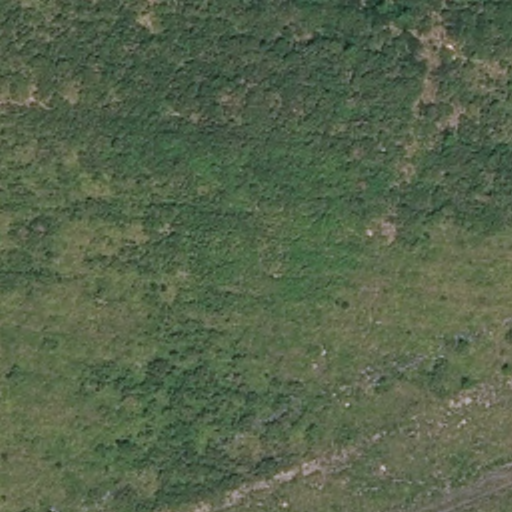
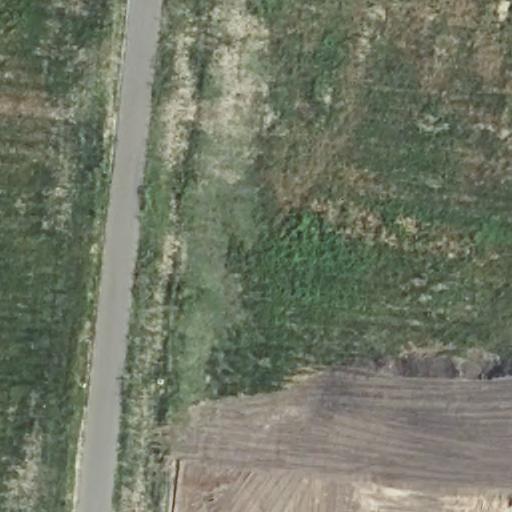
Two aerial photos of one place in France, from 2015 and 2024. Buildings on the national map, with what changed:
[]

